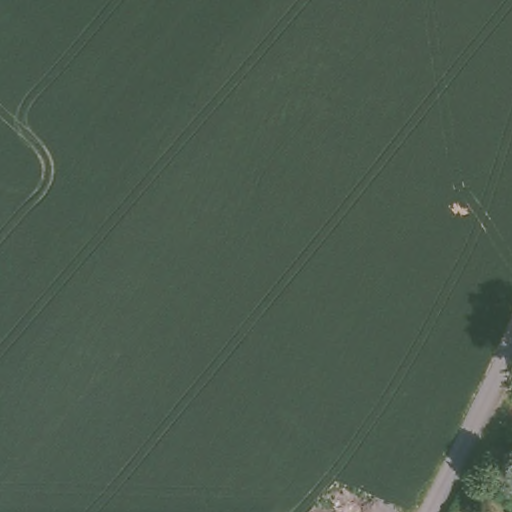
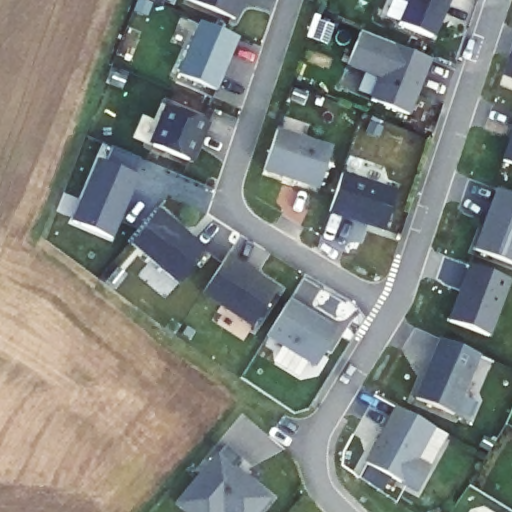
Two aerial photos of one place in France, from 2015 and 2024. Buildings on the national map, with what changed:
new [(245,0),(236,19),(192,0),(245,0)]
new [(449,4),(434,39),(401,26),(412,0),(452,0),(451,4),(449,4)]
new [(240,38),(218,91),(180,75),(203,22),(240,38)]
new [(433,61),(411,116),(373,102),(383,79),(350,65),(363,33),(433,61)]
new [(171,106),(210,124),(201,146),(198,145),(191,160),(154,145),(171,106)]
new [(334,149),(321,190),(265,172),(279,131),(334,149)]
new [(506,163),(512,148),(512,165),(506,163)]
new [(114,237),(75,220),(101,160),(140,177),(124,213),(121,221),(114,237)]
new [(344,175),(399,194),(386,232),(331,214),(344,175)]
new [(512,196),(512,267),(476,254),(499,192),(512,196)]
new [(160,210),(208,252),(181,284),(133,243),(160,210)]
new [(226,256),(276,291),(251,328),(203,294),(226,256)]
new [(489,337),(448,322),(468,266),(511,280),(489,337)]
new [(342,328),(319,364),(270,333),(293,297),(342,328)]
new [(479,358),(454,417),(416,402),(442,342),(479,358)]
new [(431,468),(416,494),(364,463),(394,407),(434,430),(419,460),(431,468)]
new [(241,459),(234,469),(269,498),(257,512),(186,512),(176,504),(225,446),(241,459)]

